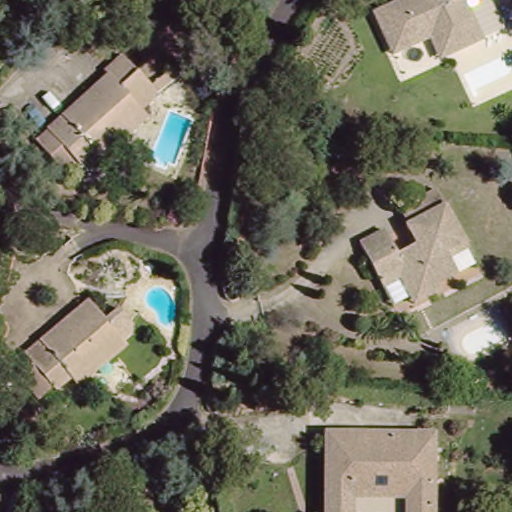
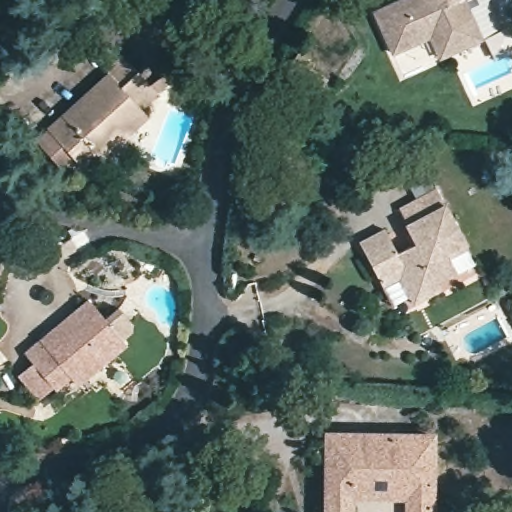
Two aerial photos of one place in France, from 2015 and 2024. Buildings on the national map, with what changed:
unchanged [(408,51),(393,57),(383,37),(375,16),(410,0),(466,0),(461,2),(481,44),(456,55),(440,62),(430,41),(408,51)]
unchanged [(30,140),(50,120),(80,97),(83,101),(104,84),(100,79),(127,57),(163,100),(140,117),(112,140),(108,136),(106,134),(92,144),(91,142),(76,153),(59,164),(30,140)]
unchanged [(406,302),(388,311),(378,292),(355,247),(379,234),(392,257),(411,249),(401,229),(417,222),(410,206),(432,195),(440,210),(462,254),(471,269),(451,279),(432,288),(436,295),(409,308),(406,302)]
unchanged [(1,228),(0,230),(0,226),(1,228)]
unchanged [(25,352),(93,297),(109,313),(121,306),(138,330),(123,343),(91,308),(65,330),(70,336),(50,352),(46,346),(36,353),(30,359),(25,352)]
unchanged [(123,343),(128,350),(108,367),(104,362),(76,385),(74,382),(59,395),(56,390),(40,403),(18,380),(35,366),(30,359),(46,346),(50,352),(70,336),(65,330),(91,308),(123,343)]
unchanged [(405,501),(349,498),(348,512),(324,512),(325,497),(327,437),(431,441),(429,502),(429,512),(404,512),(405,501)]

